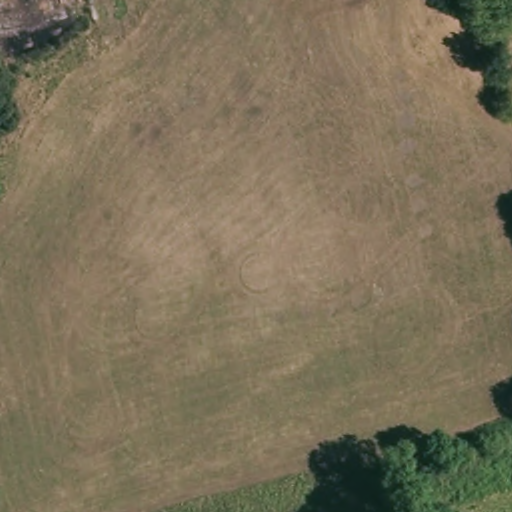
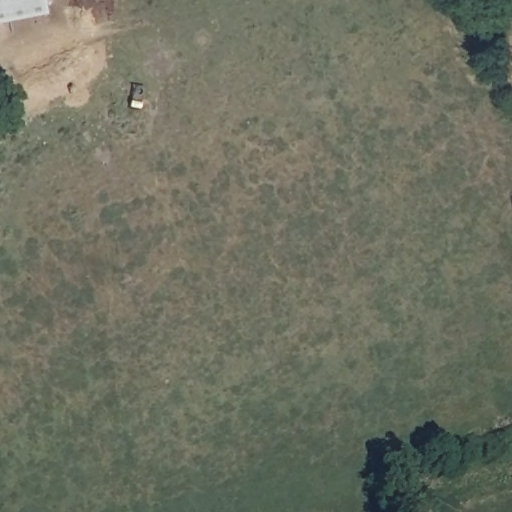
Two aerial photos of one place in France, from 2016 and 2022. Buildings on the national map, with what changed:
new [(0,23),(0,0),(42,0),(45,15),(0,23)]

